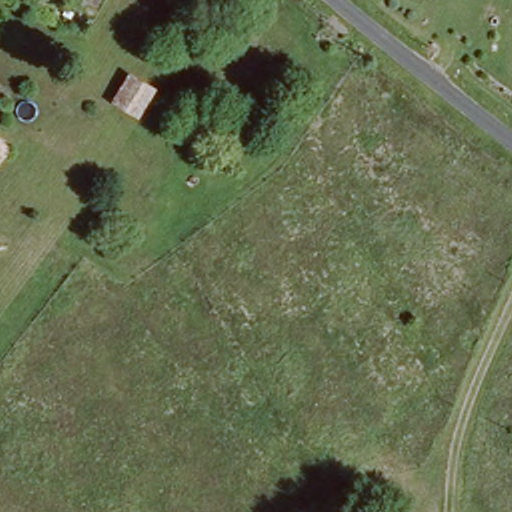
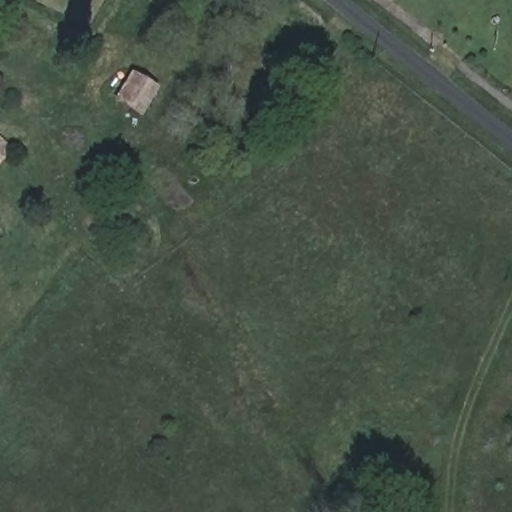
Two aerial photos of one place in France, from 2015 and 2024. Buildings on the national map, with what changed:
unchanged [(129,71),(158,86),(140,117),(112,103),(129,71)]
unchanged [(12,146),(0,161),(0,137),(12,146)]
unchanged [(395,512),(356,512),(401,481),(414,499),(395,512)]

